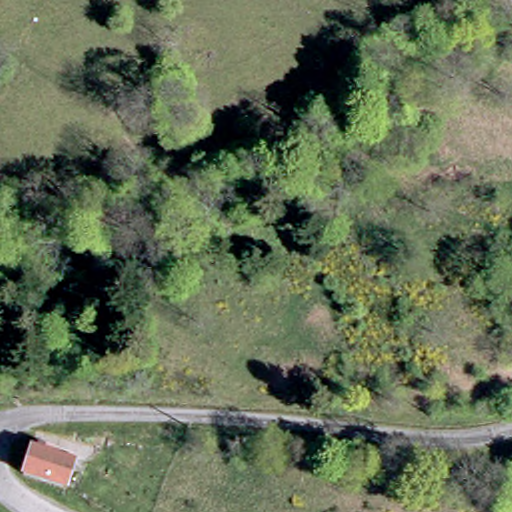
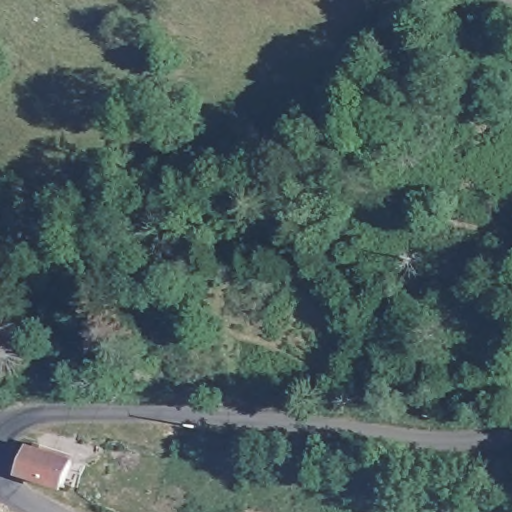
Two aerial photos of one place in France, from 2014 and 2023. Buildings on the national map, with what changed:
unchanged [(37,450),(40,444),(72,454),(70,462),(75,464),(67,489),(16,472),(25,446),(37,450)]

